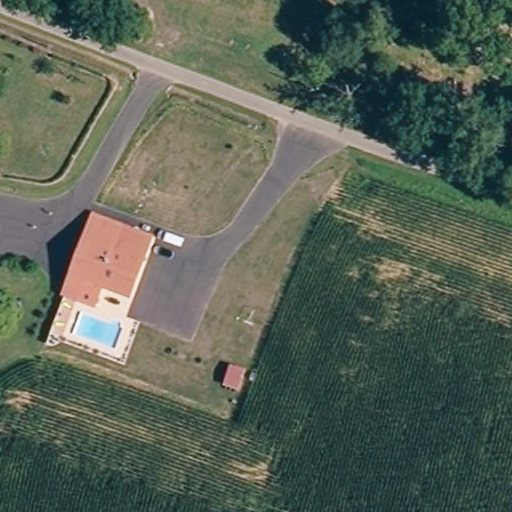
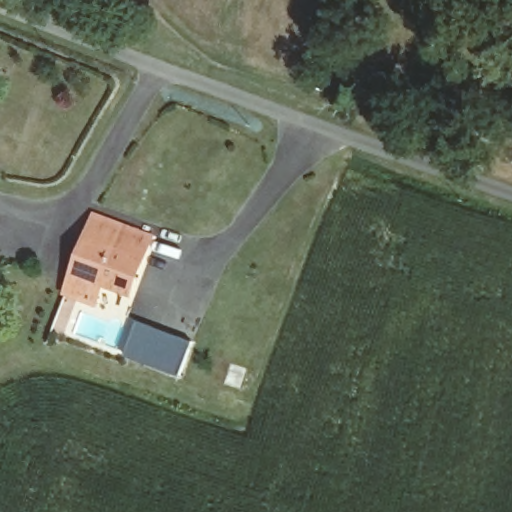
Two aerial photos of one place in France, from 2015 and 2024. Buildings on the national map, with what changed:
unchanged [(65,292),(71,273),(84,235),(91,211),(126,223),(149,230),(141,252),(129,290),(100,282),(94,301),(65,292)]
new [(124,358),(136,323),(189,342),(177,377),(124,358)]

